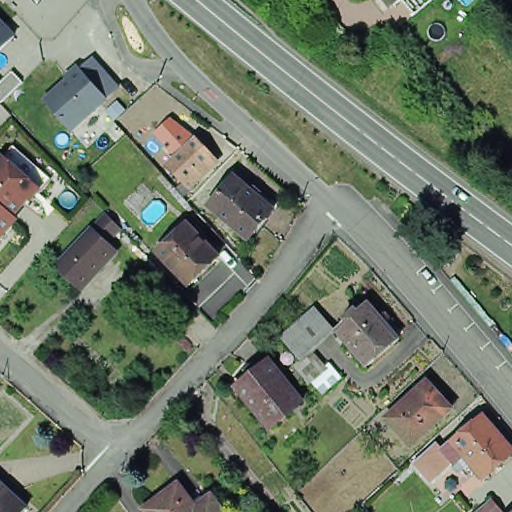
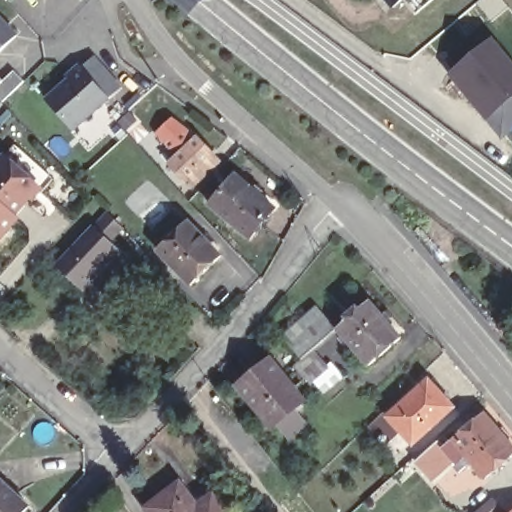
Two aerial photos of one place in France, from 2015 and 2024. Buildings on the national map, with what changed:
unchanged [(399,0),(393,5),(390,0),(399,0)]
unchanged [(18,37),(0,55),(0,17),(18,37)]
new [(493,37),(512,60),(512,101),(487,122),(486,124),(447,77),(493,37)]
unchanged [(125,90),(76,134),(47,99),(97,60),(125,90)]
unchanged [(4,84),(15,74),(25,85),(3,105),(0,101),(0,80),(4,84)]
new [(487,122),(512,101),(512,126),(500,136),(487,122)]
unchanged [(200,135),(215,151),(186,179),(172,163),(200,135)]
unchanged [(5,144),(43,177),(33,189),(29,185),(3,214),(0,211),(0,150),(5,144)]
unchanged [(253,236),(210,202),(235,172),(252,187),(255,182),(264,189),(260,193),(277,207),(253,236)]
unchanged [(3,214),(7,217),(0,225),(0,211),(3,214)]
unchanged [(81,289),(60,268),(94,232),(109,217),(115,222),(123,231),(108,247),(115,254),(81,289)]
unchanged [(155,252),(183,225),(216,259),(186,287),(155,252)]
unchanged [(338,326),(348,317),(346,315),(358,305),(360,307),(370,298),(402,335),(369,362),(338,326)]
unchanged [(294,363),(302,356),(299,352),(283,333),(318,304),(329,317),(336,327),(310,349),(321,362),(314,369),(305,376),(294,363)]
unchanged [(239,387),(270,362),(305,403),(273,430),(239,387)]
unchanged [(415,389),(422,397),(435,385),(453,405),(413,442),(388,415),(415,389)]
unchanged [(435,441),(441,448),(449,441),(480,412),(512,449),(512,453),(482,478),(462,455),(452,463),(448,457),(432,471),(420,455),(435,441)]
unchanged [(31,502),(22,512),(0,512),(0,474),(31,502)]
unchanged [(147,500),(182,474),(200,497),(213,487),(215,485),(233,510),(232,511),(231,512),(156,512),(147,500)]
unchanged [(505,507),(499,512),(477,512),(495,496),(505,507)]
unchanged [(512,511),(512,512),(511,512),(512,511)]

